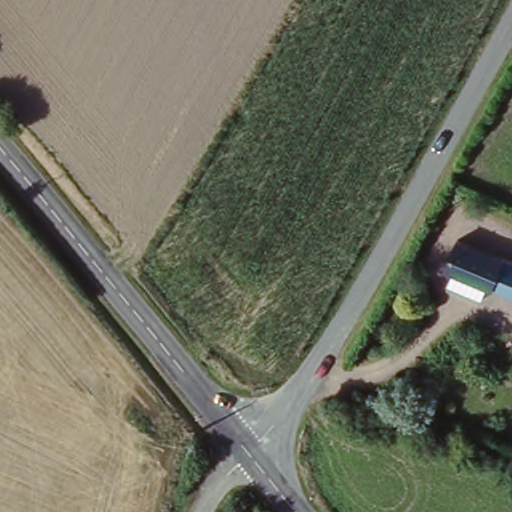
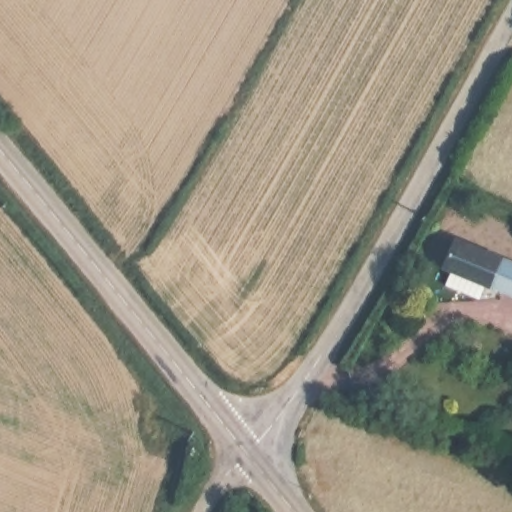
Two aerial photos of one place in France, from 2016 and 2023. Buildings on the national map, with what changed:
unchanged [(512,299),(441,269),(456,238),(512,263),(512,299)]

